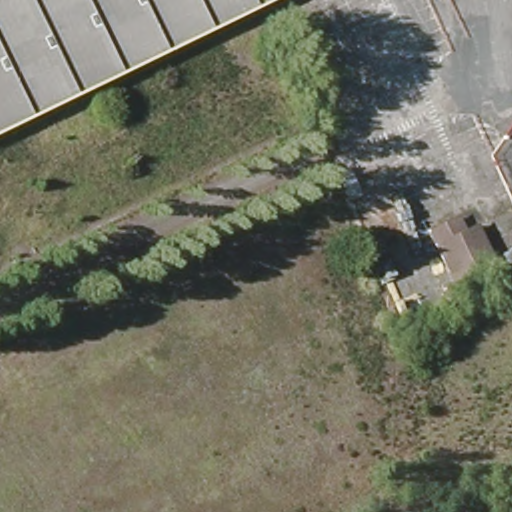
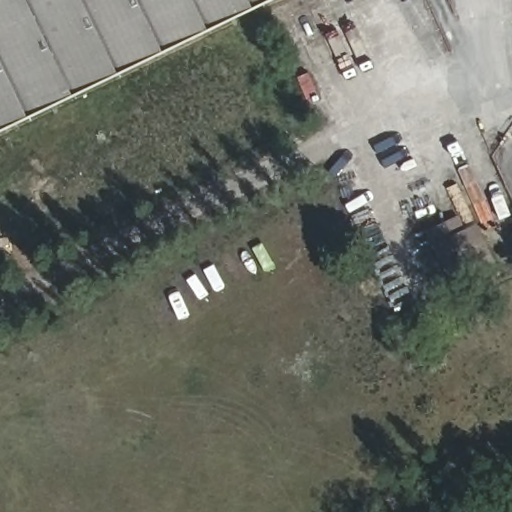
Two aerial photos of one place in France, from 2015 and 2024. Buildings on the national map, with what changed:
unchanged [(261,6),(0,133),(0,0),(274,0),(261,6)]
unchanged [(428,232),(456,220),(462,234),(474,227),(492,264),(452,282),(428,232)]

